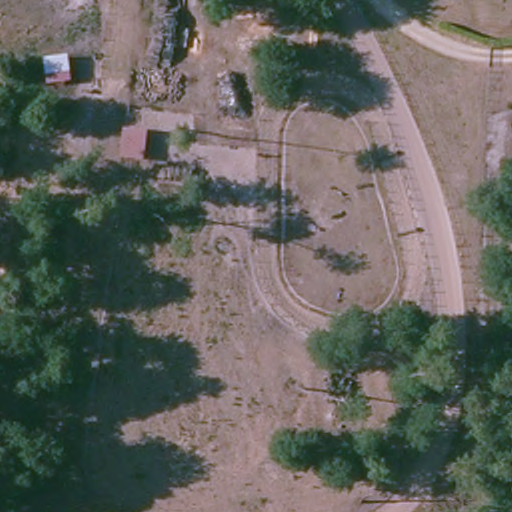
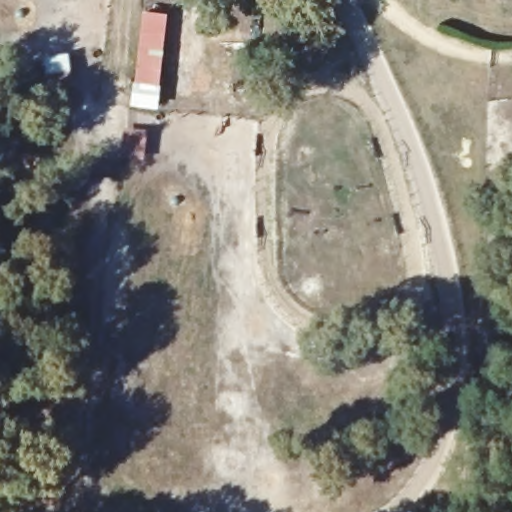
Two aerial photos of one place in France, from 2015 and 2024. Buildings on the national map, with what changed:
new [(161,85),(158,109),(130,106),(134,82),(138,47),(165,50),(161,85)]

